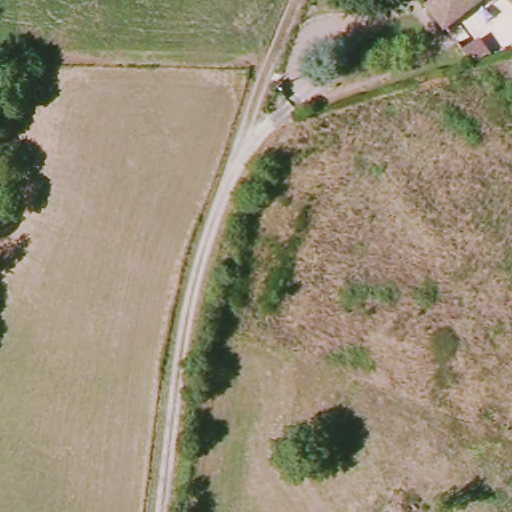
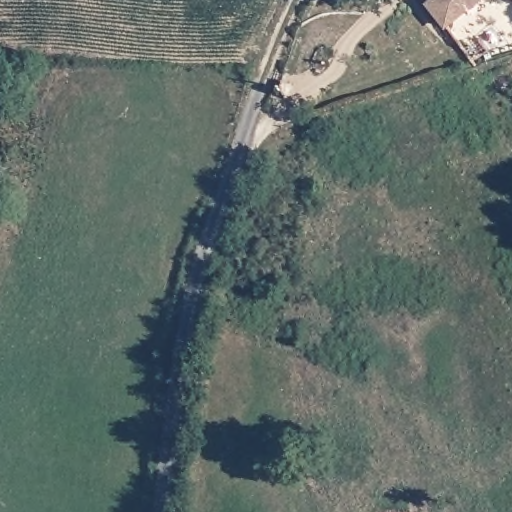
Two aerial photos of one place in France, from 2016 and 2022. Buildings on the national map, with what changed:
unchanged [(432,0),(478,0),(445,26),(426,5),(432,0)]

